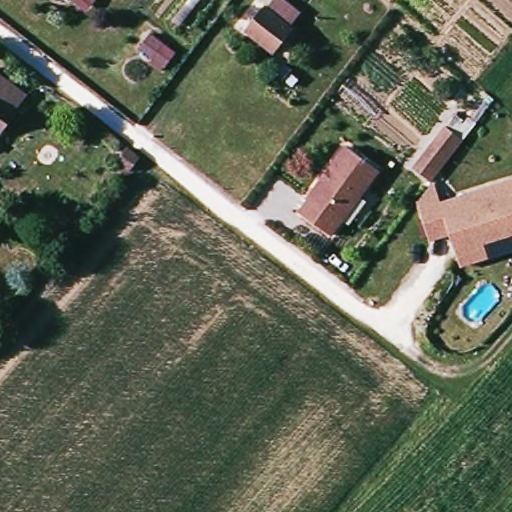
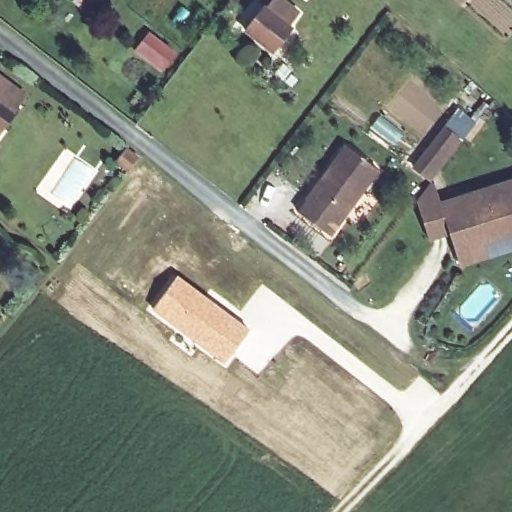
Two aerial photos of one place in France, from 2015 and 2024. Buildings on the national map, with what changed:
unchanged [(281,0),(302,17),(293,30),(296,33),(277,57),(244,31),(262,8),(266,11),(275,0),(281,0)]
unchanged [(31,96),(5,130),(0,126),(0,76),(2,74),(31,96)]
unchanged [(460,135),(430,178),(412,167),(443,126),(460,135)]
unchanged [(332,231),(302,208),(347,148),(377,171),(332,231)]
unchanged [(460,264),(450,233),(429,239),(415,192),(436,187),(440,201),(512,178),(512,250),(460,264)]
new [(177,273),(249,329),(222,363),(176,329),(150,307),(177,273)]

